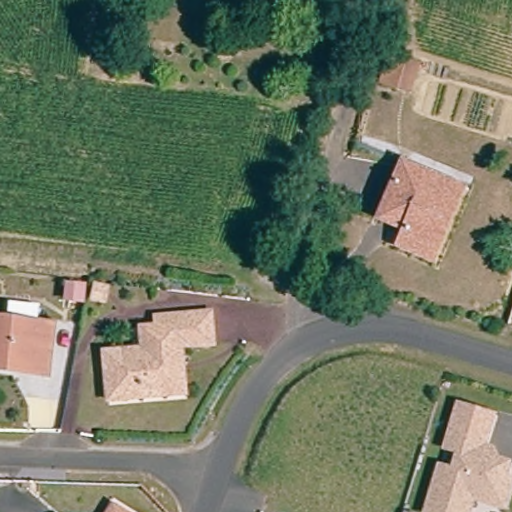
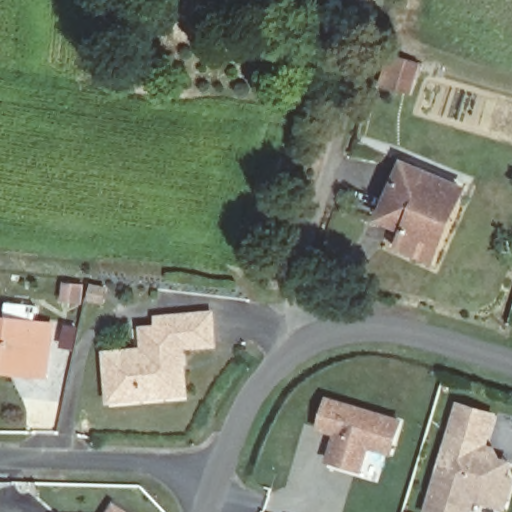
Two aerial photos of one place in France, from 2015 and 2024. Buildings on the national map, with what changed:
unchanged [(414,64),(404,91),(385,85),(394,58),(414,64)]
unchanged [(446,249),(408,239),(410,231),(412,223),(389,217),(404,163),(453,177),(463,179),(446,249)]
unchanged [(103,281),(99,298),(85,297),(85,279),(103,281)]
unchanged [(124,301),(109,299),(109,282),(124,284),(124,301)]
unchanged [(8,302),(38,305),(36,321),(53,323),(47,374),(30,372),(0,368),(0,316),(5,317),(8,302)]
unchanged [(217,325),(213,358),(184,354),(177,402),(104,393),(109,342),(146,347),(149,329),(164,331),(165,319),(217,325)]
unchanged [(491,443),(503,462),(511,462),(512,463),(512,469),(506,475),(512,482),(512,491),(506,511),(476,500),(473,512),(424,512),(441,463),(452,467),(456,453),(443,449),(458,400),(498,412),(491,443)]
new [(327,403),(399,424),(390,456),(367,449),(360,473),(328,464),(336,436),(319,431),(327,403)]
unchanged [(123,498),(149,512),(115,512),(123,498)]

